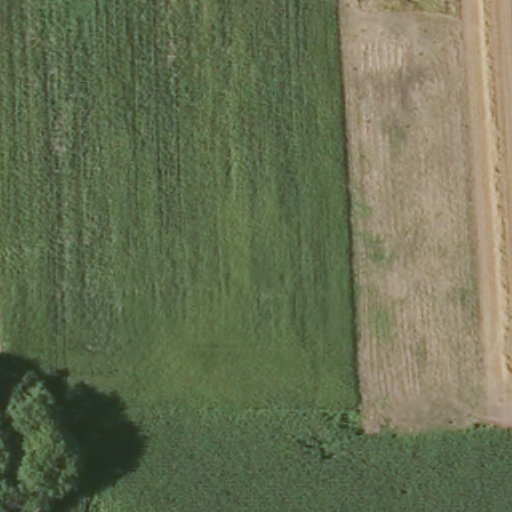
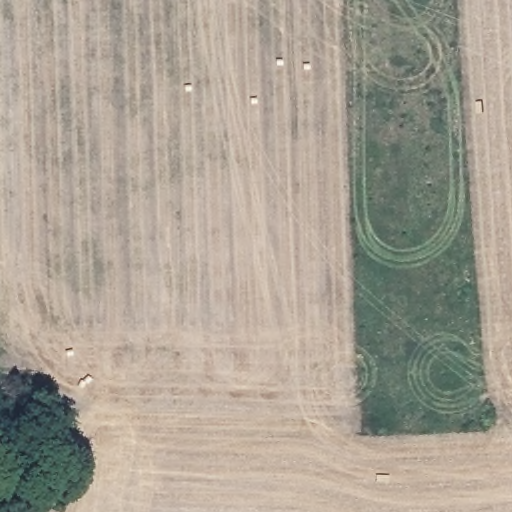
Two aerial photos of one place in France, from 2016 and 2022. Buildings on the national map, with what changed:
[]

